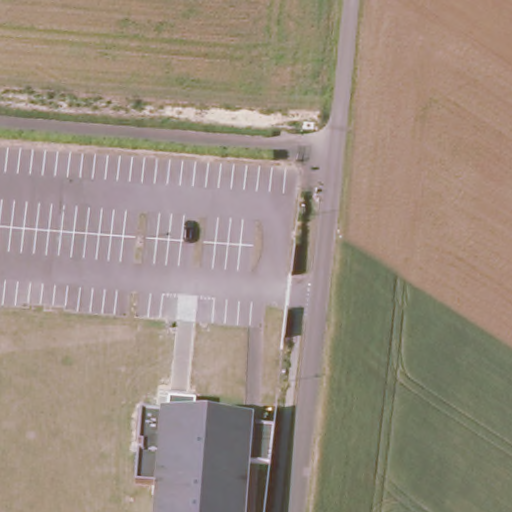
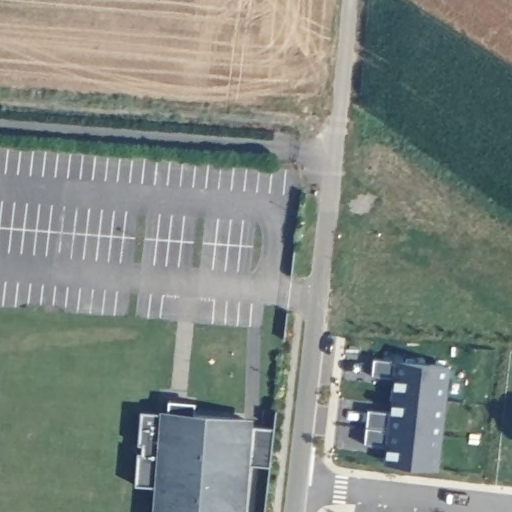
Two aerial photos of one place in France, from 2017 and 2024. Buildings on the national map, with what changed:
new [(385,461),(387,446),(364,443),(369,410),(387,411),(399,395),(392,395),(391,377),(372,375),(374,357),(452,366),(441,467),(385,461)]
unchanged [(271,469),(253,466),(249,512),(153,512),(154,490),(134,486),(141,410),(254,417),(253,427),(274,430),(271,469)]

